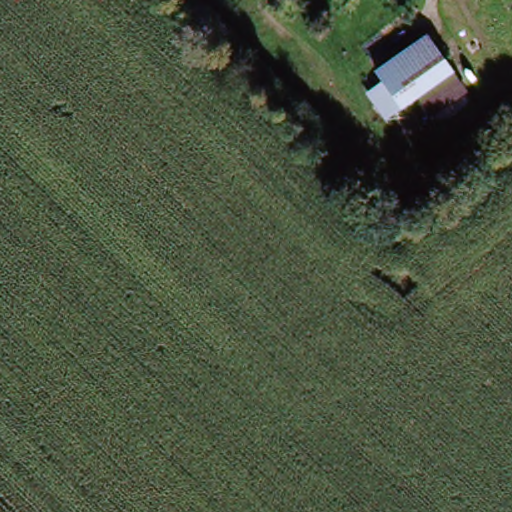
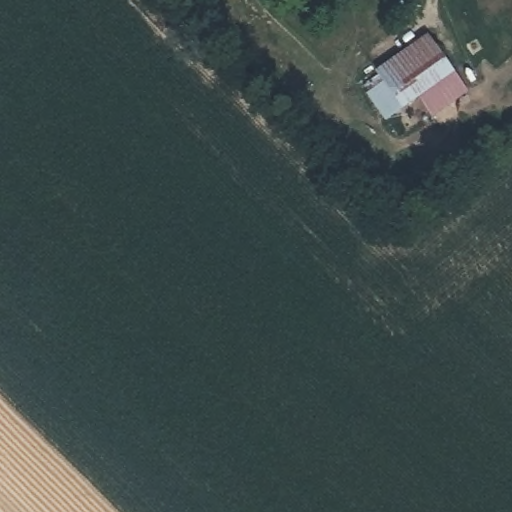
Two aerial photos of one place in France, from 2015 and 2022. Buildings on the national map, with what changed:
unchanged [(433,119),(418,103),(403,115),(373,80),(406,53),(417,43),(426,53),(463,93),(433,119)]

